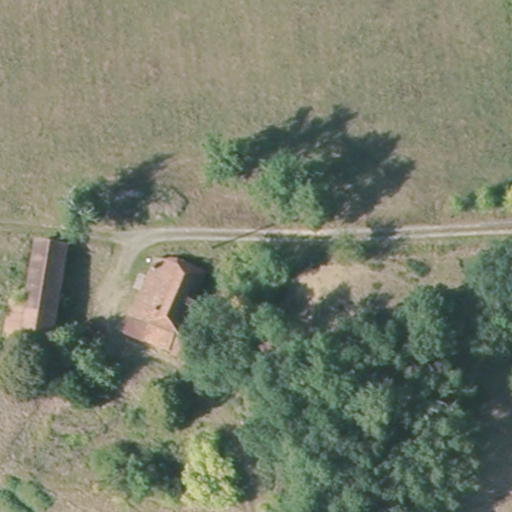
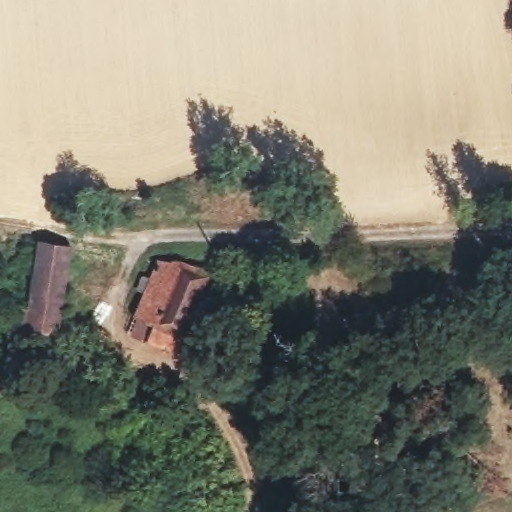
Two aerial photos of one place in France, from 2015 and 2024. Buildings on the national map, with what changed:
unchanged [(71,242),(64,303),(32,300),(40,237),(71,242)]
unchanged [(212,266),(185,322),(214,336),(205,353),(151,324),(157,308),(144,301),(170,248),(191,252),(212,266)]
unchanged [(13,300),(32,300),(64,303),(61,335),(11,332),(13,300)]

